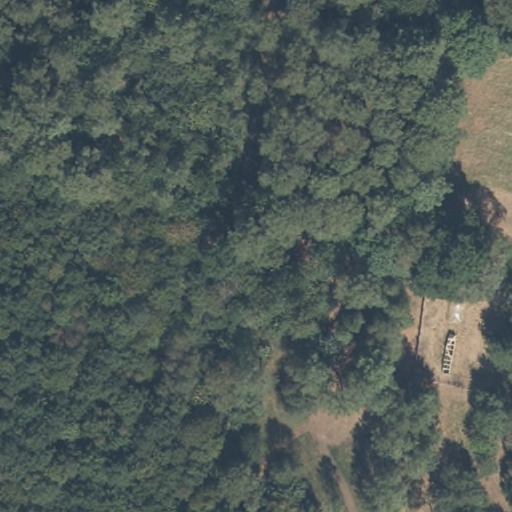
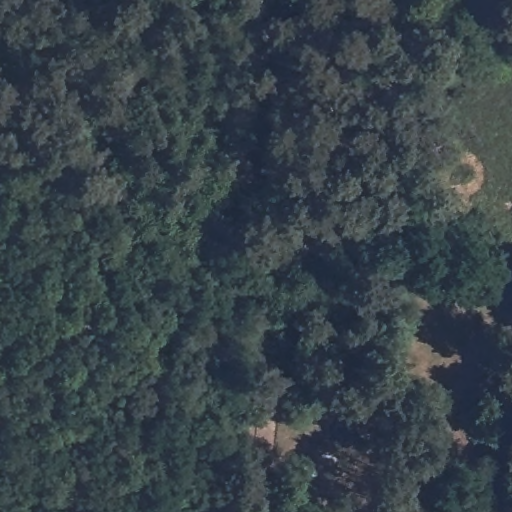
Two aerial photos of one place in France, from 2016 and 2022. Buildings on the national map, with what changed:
unchanged [(508,250),(512,251),(512,274),(505,273),(508,250)]

